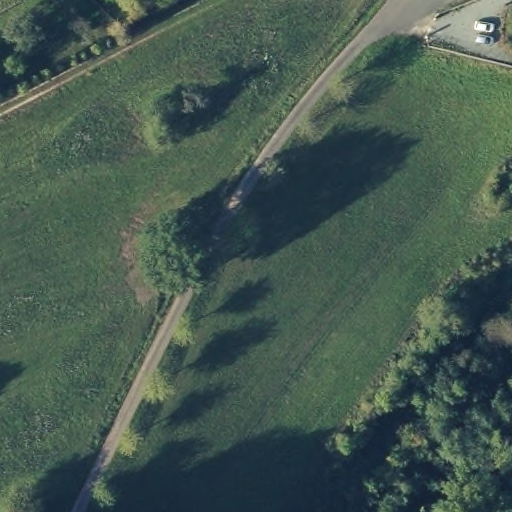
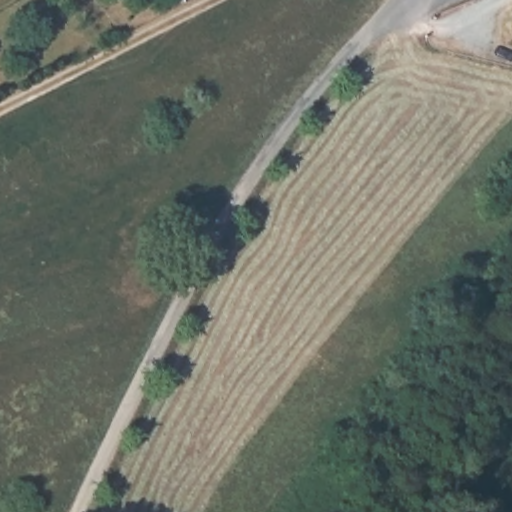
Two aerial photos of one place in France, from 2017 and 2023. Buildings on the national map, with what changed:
[]

